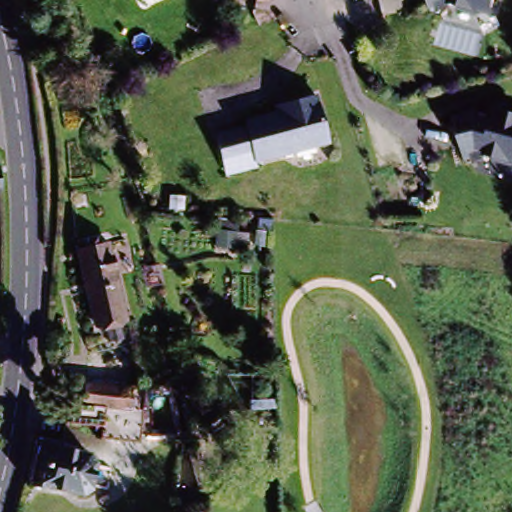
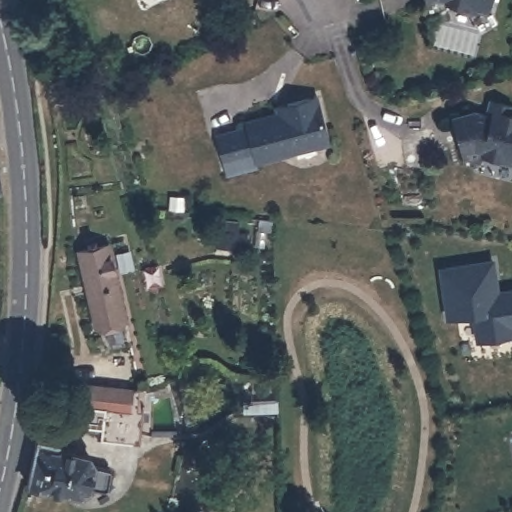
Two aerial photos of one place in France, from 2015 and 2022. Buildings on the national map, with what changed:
unchanged [(475,13),(440,3),(438,8),(421,12),(418,0),(484,0),(481,9),(475,13)]
unchanged [(477,114),(481,100),(487,101),(504,105),(502,113),(512,115),(512,161),(511,162),(475,154),(475,159),(458,163),(445,116),(465,111),(477,114)]
unchanged [(325,149),(251,164),(250,158),(218,163),(214,134),(245,129),(245,123),(277,118),(275,111),(286,109),(316,101),(325,149)]
unchanged [(103,250),(120,324),(90,331),(72,257),(103,250)]
new [(496,292),(512,289),(512,339),(511,339),(510,334),(476,339),(472,313),(446,317),(439,268),(491,260),(496,292)]
unchanged [(133,403),(138,404),(135,441),(98,438),(100,425),(60,422),(61,405),(61,403),(61,398),(75,400),(77,386),(77,383),(127,387),(135,387),(135,390),(134,392),(133,403)]
unchanged [(38,439),(62,443),(61,450),(88,454),(97,465),(92,487),(81,496),(28,486),(38,439)]

